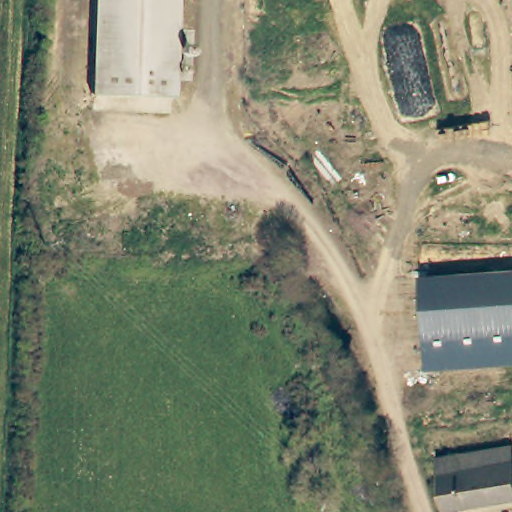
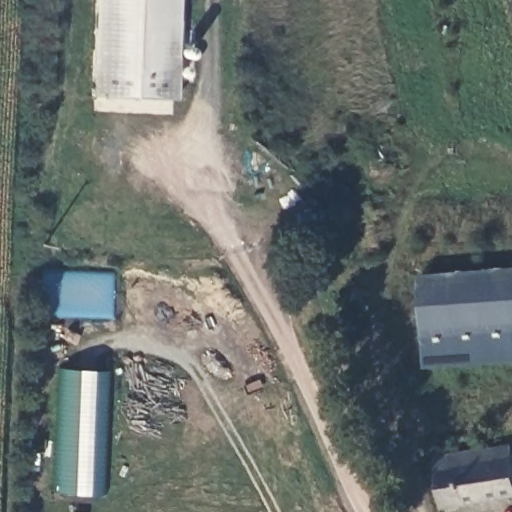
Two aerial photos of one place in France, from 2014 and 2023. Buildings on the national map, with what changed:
unchanged [(92,95),(96,0),(175,0),(170,99),(92,95)]
unchanged [(416,273),(512,269),(512,329),(419,333),(416,273)]
unchanged [(419,333),(512,329),(512,362),(421,367),(419,333)]
new [(104,496),(57,494),(61,370),(109,372),(104,496)]
unchanged [(512,452),(512,499),(445,508),(435,458),(511,448),(512,452)]

